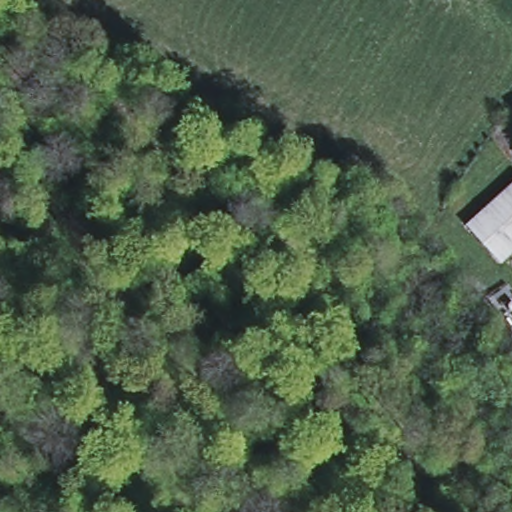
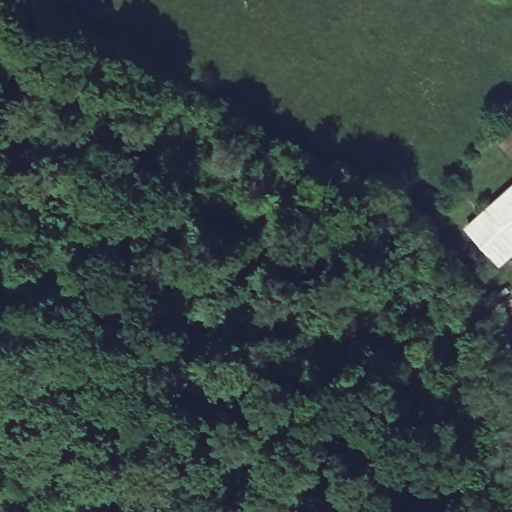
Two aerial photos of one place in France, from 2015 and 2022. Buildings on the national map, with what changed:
unchanged [(467,227),(480,215),(512,187),(512,253),(500,263),(467,227)]

